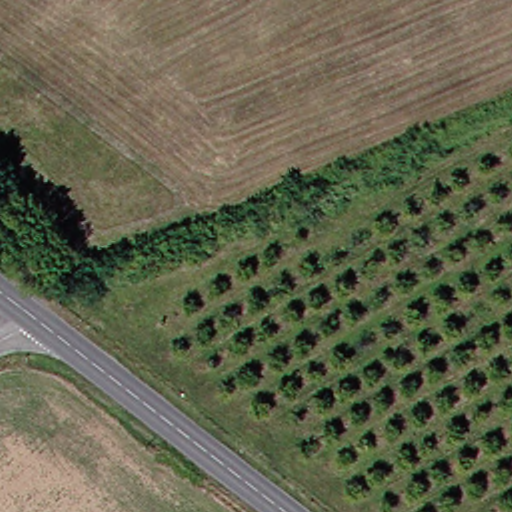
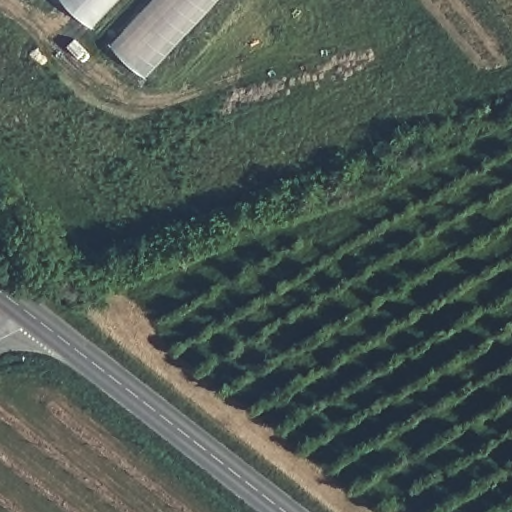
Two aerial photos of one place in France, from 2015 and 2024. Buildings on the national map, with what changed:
new [(120,0),(98,24),(71,0),(120,0)]
new [(156,0),(219,0),(149,75),(116,43),(156,0)]

